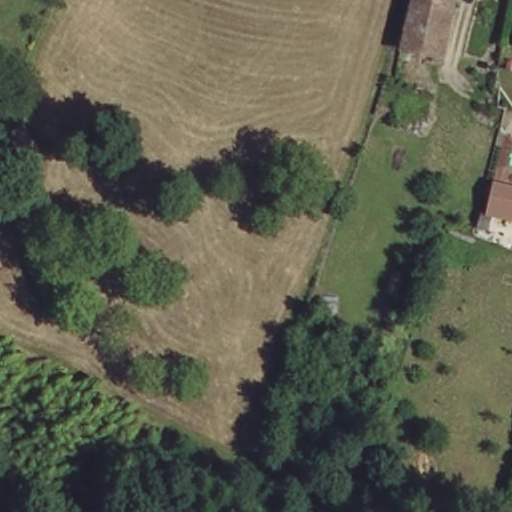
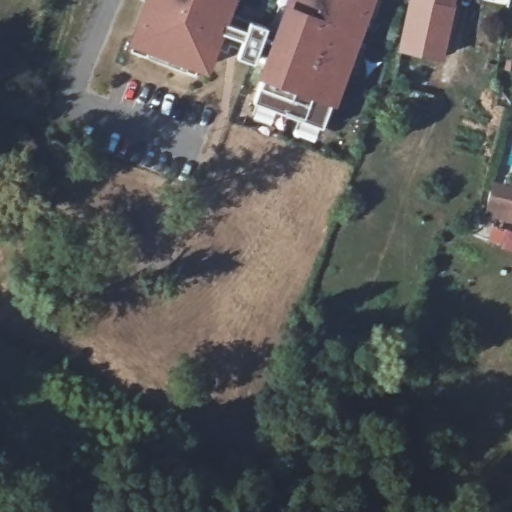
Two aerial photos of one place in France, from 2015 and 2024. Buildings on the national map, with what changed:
new [(240,20),(249,23),(266,30),(263,39),(276,44),(292,0),(370,0),(322,130),(253,105),(270,60),(257,55),(253,65),(236,59),(239,51),(230,47),(227,55),(212,49),(205,69),(134,43),(149,0),(230,0),(225,15),(240,20)]
unchanged [(403,45),(413,0),(454,0),(442,55),(403,45)]
new [(484,214),(492,180),(512,185),(512,222),(484,214)]

